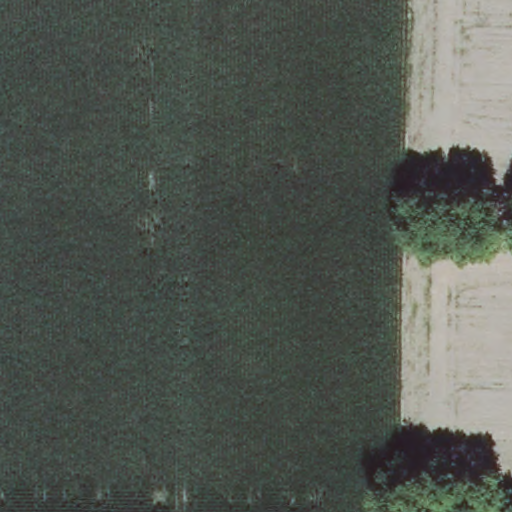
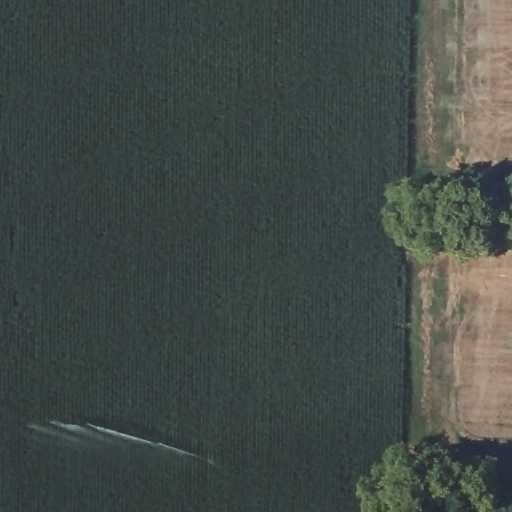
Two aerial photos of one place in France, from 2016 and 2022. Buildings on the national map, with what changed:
unchanged [(456,512),(455,511),(479,511),(479,512),(456,512)]

